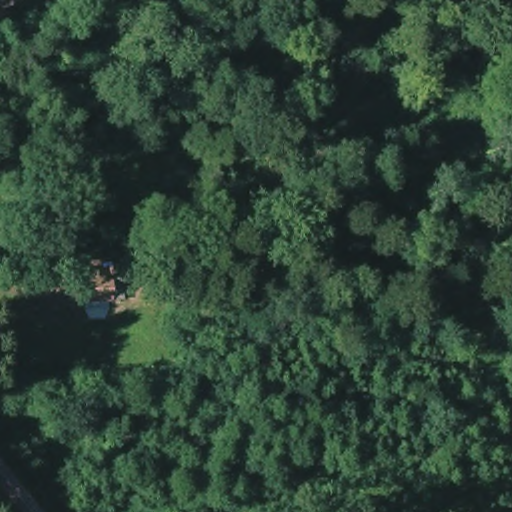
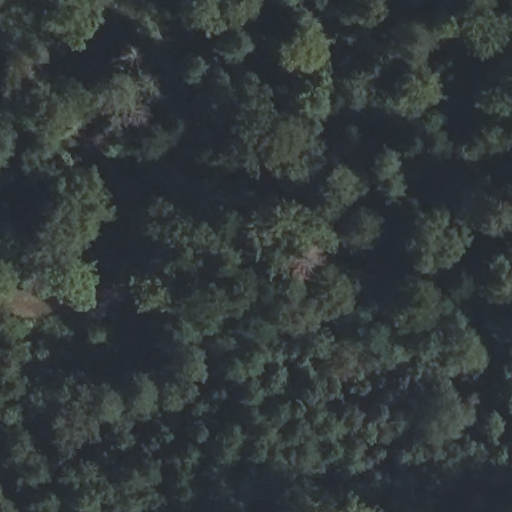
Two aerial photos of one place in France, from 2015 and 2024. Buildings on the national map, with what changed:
unchanged [(491,277),(492,262),(512,262),(512,279),(491,277)]
unchanged [(125,311),(0,312),(0,268),(126,268),(125,311)]

